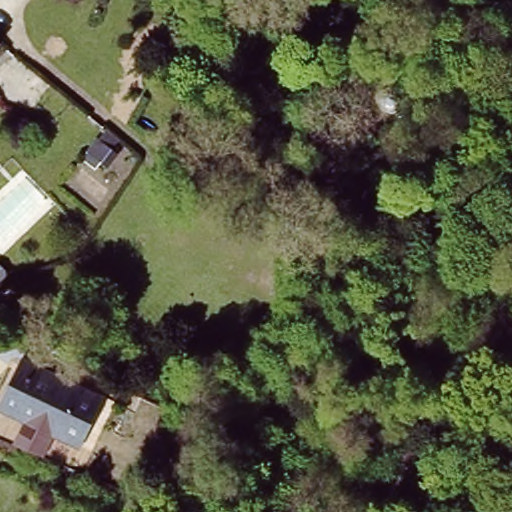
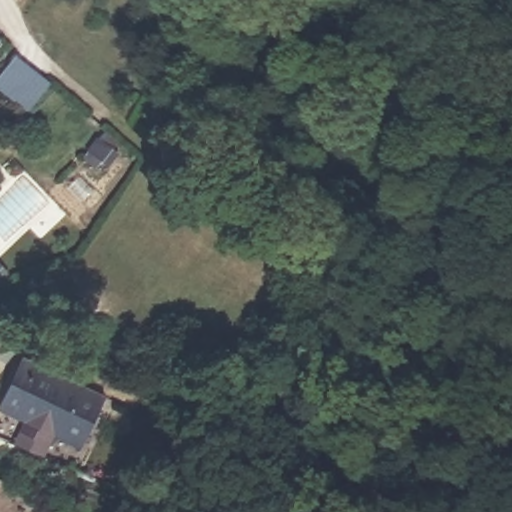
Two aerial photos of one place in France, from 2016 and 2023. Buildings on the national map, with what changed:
new [(37,114),(0,80),(0,43),(57,87),(37,114)]
unchanged [(0,51),(0,45),(3,48),(0,51)]
unchanged [(0,332),(5,334),(0,346),(0,332)]
unchanged [(22,359),(103,398),(80,445),(25,419),(0,407),(0,406),(3,399),(22,359)]

